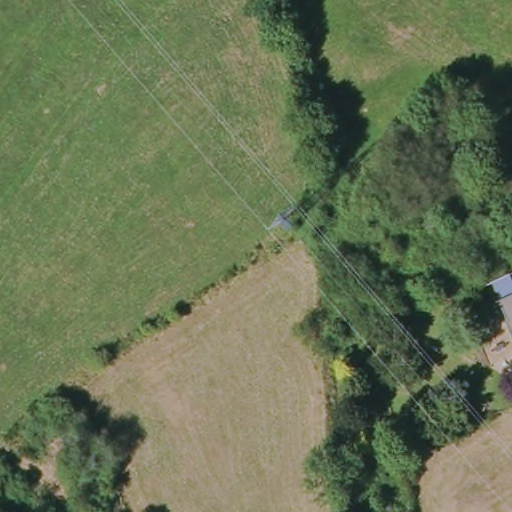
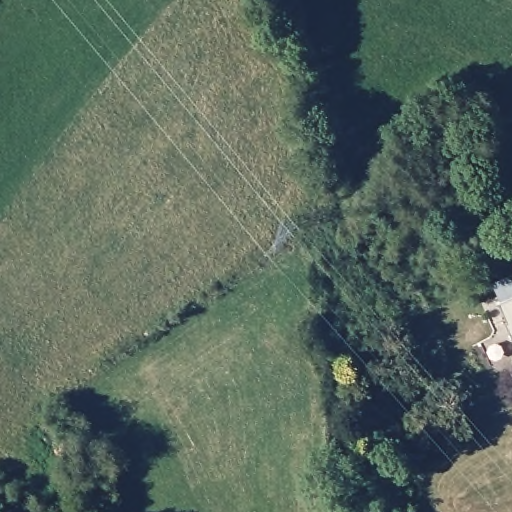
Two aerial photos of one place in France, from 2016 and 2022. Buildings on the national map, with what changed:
unchanged [(502,325),(507,322),(497,305),(512,298),(512,344),(502,325)]

